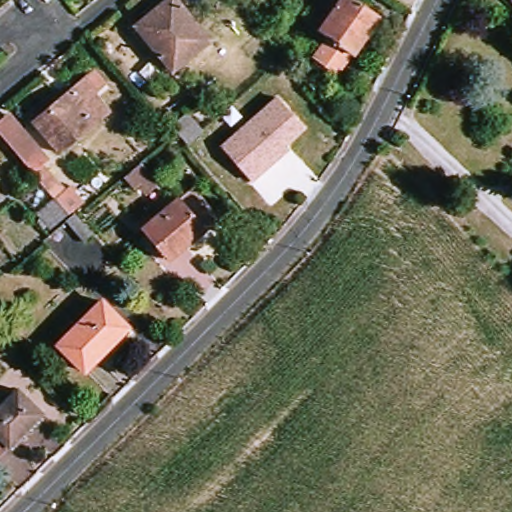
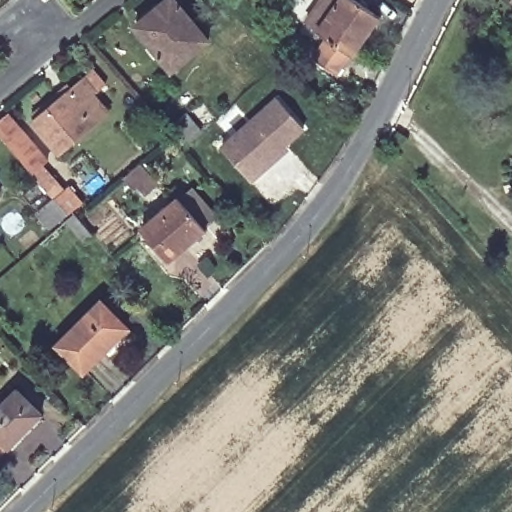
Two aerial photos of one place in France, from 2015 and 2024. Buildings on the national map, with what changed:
unchanged [(188,0),(222,39),(186,69),(150,26),(179,0),(188,0)]
unchanged [(332,35),(348,13),(336,3),(337,0),(363,0),(393,21),(367,61),(365,59),(350,80),(327,64),(342,43),(332,35)]
unchanged [(94,76),(107,90),(102,94),(117,110),(67,153),(40,123),(94,76)]
unchanged [(255,180),(225,148),(281,98),(307,126),(288,144),(292,148),(269,168),(255,180)]
unchanged [(189,112),(207,132),(191,145),(177,129),(174,125),(189,112)]
unchanged [(19,145),(34,133),(59,163),(55,165),(72,187),(76,184),(92,204),(77,216),(44,175),(19,145)]
unchanged [(3,189),(0,191),(0,185),(3,189)]
unchanged [(183,258),(156,227),(194,194),(202,187),(226,212),(216,220),(220,224),(183,258)]
unchanged [(106,302),(136,334),(120,351),(114,344),(86,371),(62,344),(106,302)]
unchanged [(31,384),(54,409),(6,454),(0,448),(0,413),(31,384)]

